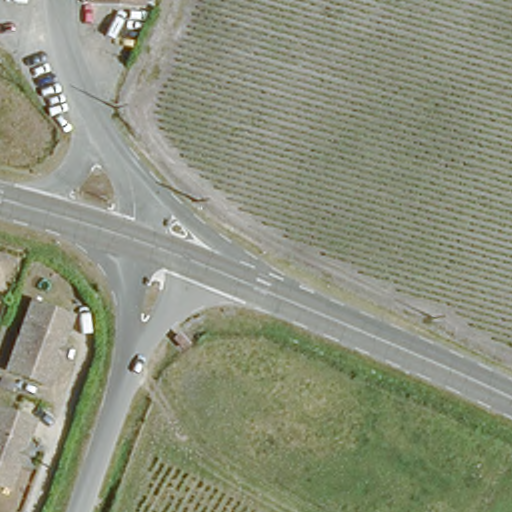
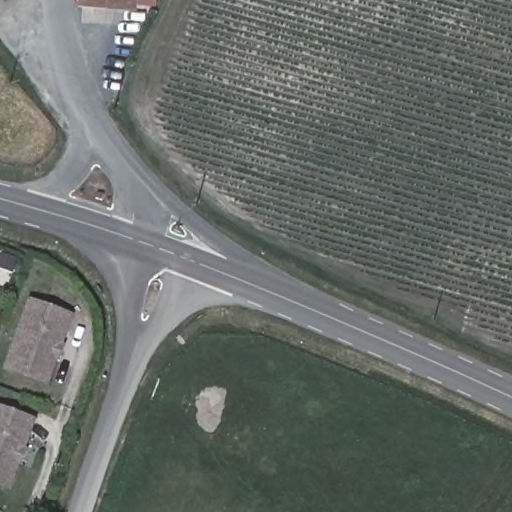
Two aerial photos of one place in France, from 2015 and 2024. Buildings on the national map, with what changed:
unchanged [(135,2),(85,1),(85,0),(135,0),(135,2)]
unchanged [(26,26),(18,16),(26,8),(36,18),(26,26)]
unchanged [(50,385),(7,370),(31,297),(76,313),(50,385)]
unchanged [(11,490),(0,486),(0,403),(36,417),(11,490)]

